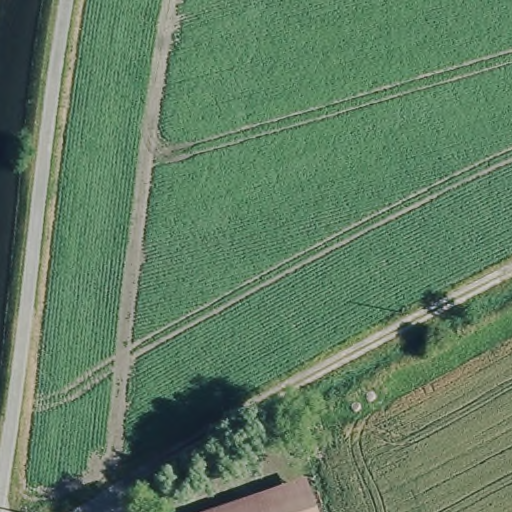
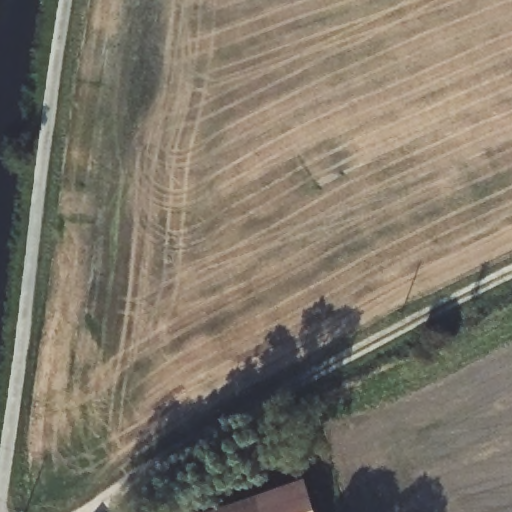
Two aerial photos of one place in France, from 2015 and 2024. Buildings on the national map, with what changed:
unchanged [(314,512),(240,512),(308,491),(314,512)]

